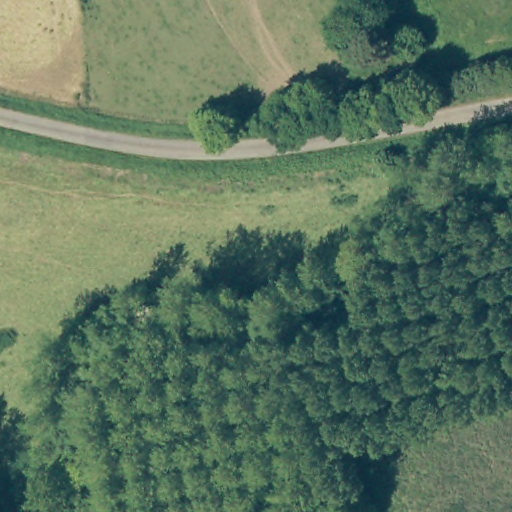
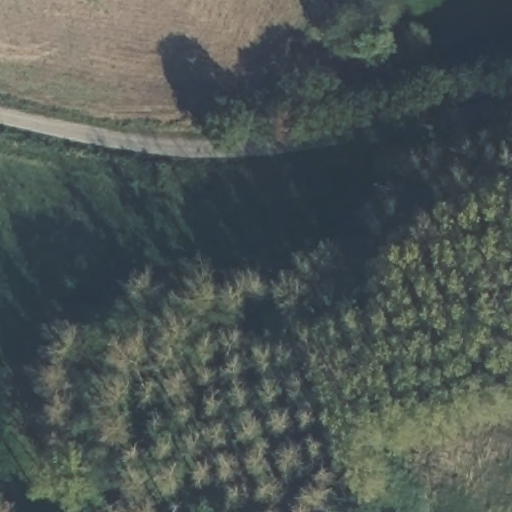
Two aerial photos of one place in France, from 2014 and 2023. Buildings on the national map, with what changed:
[]

